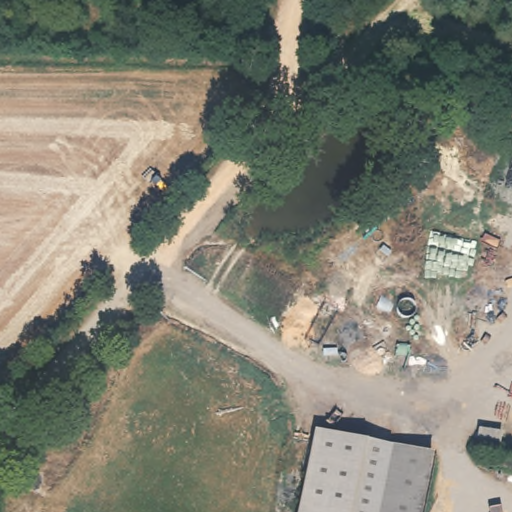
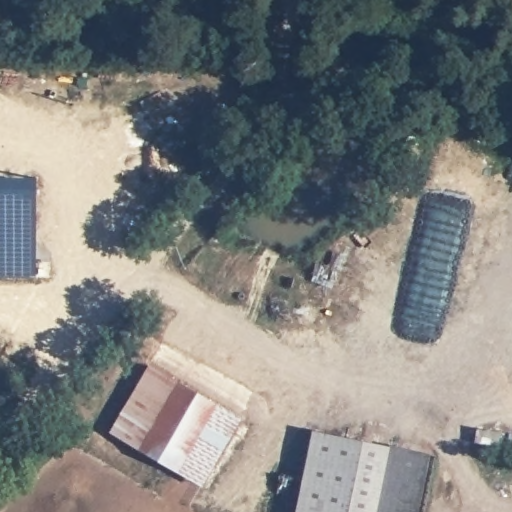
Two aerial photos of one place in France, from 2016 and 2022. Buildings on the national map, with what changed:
new [(38,275),(0,275),(0,176),(38,176),(38,275)]
new [(202,487),(107,432),(149,363),(242,418),(202,487)]
unchanged [(313,426),(431,448),(429,459),(419,512),(297,512),(313,426)]

